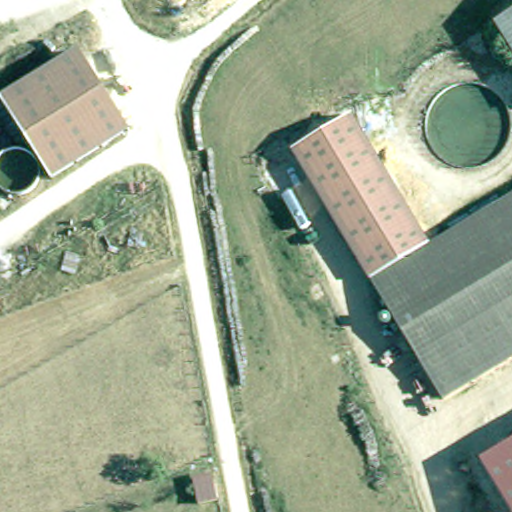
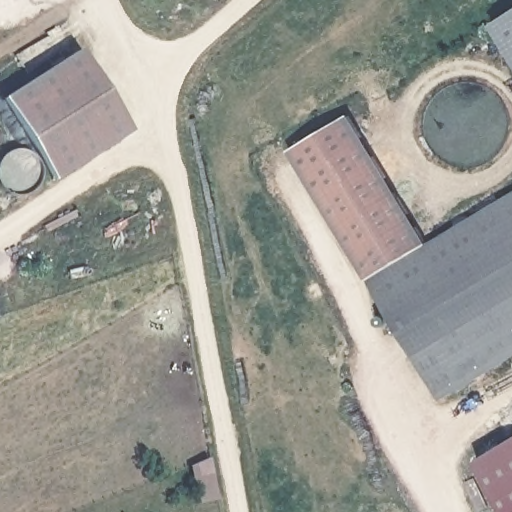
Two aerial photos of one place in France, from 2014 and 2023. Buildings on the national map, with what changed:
unchanged [(491,21),(512,8),(512,54),(491,21)]
unchanged [(0,104),(0,93),(72,47),(123,126),(46,176),(0,104)]
unchanged [(447,395),(297,146),(355,111),(434,242),(512,195),(512,356),(447,395)]
unchanged [(510,512),(478,460),(512,440),(512,512),(510,512)]

